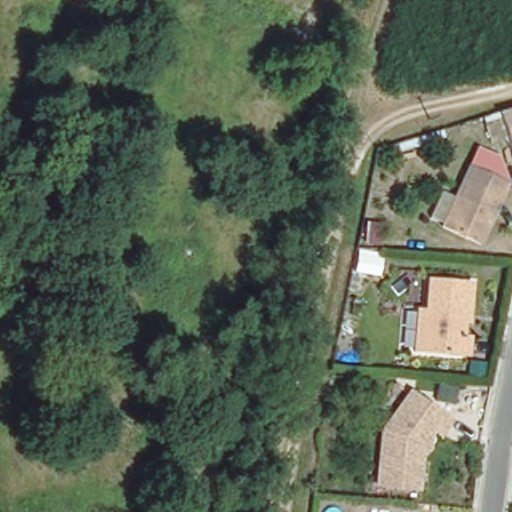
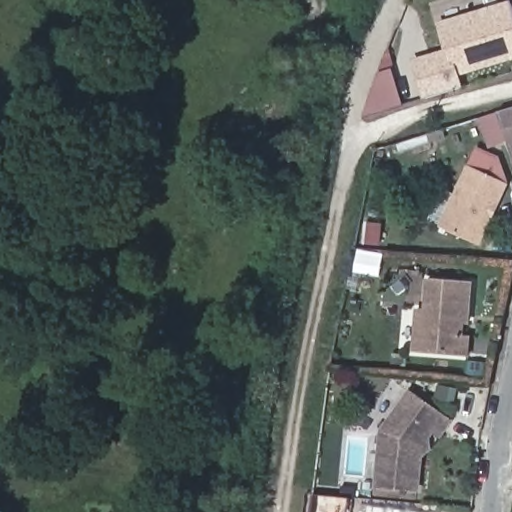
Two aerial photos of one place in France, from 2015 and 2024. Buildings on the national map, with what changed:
new [(512,8),(512,59),(459,74),(463,86),(424,98),(411,60),(446,50),(438,22),(510,1),(512,8)]
unchanged [(512,143),(500,146),(490,117),(505,113),(512,111),(512,143)]
unchanged [(470,172),(508,189),(480,251),(442,234),(470,172)]
unchanged [(386,219),(385,239),(365,237),(366,217),(386,219)]
unchanged [(378,248),(377,260),(357,258),(358,247),(378,248)]
unchanged [(470,339),(469,356),(415,352),(415,335),(417,311),(425,312),(428,281),(472,284),(470,311),(469,323),(464,323),(463,338),(470,339)]
unchanged [(458,385),(455,397),(438,394),(441,381),(458,385)]
unchanged [(379,432),(406,394),(446,422),(436,435),(430,431),(417,447),(413,490),(373,486),(379,432)]

